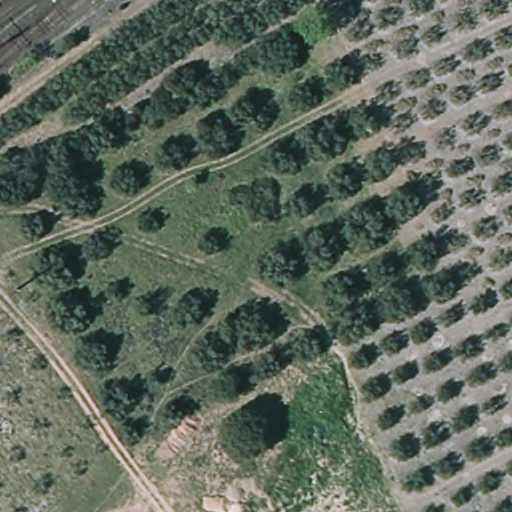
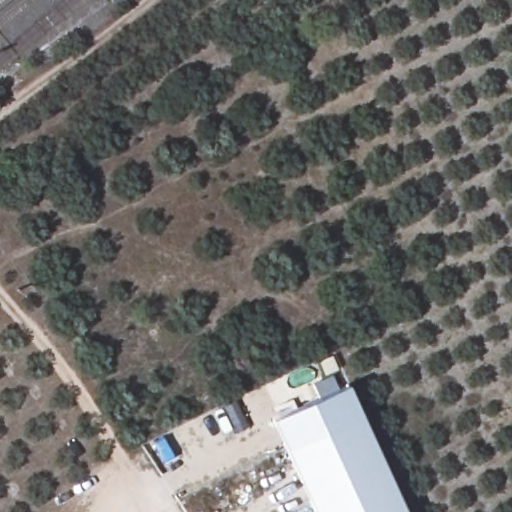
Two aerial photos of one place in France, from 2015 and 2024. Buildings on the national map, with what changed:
new [(273,418),(345,385),(359,416),(286,447),(273,418)]
new [(404,512),(316,512),(286,447),(359,416),(404,512)]

